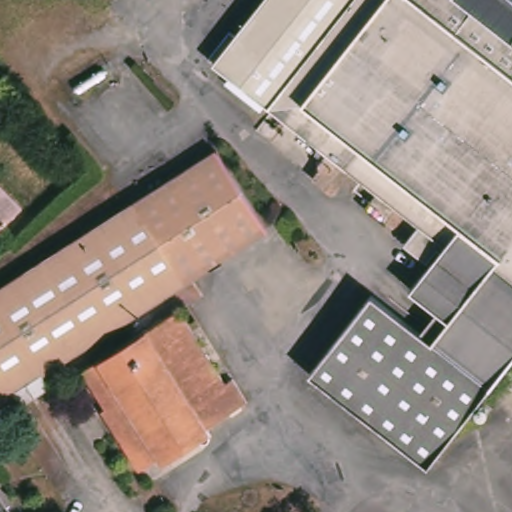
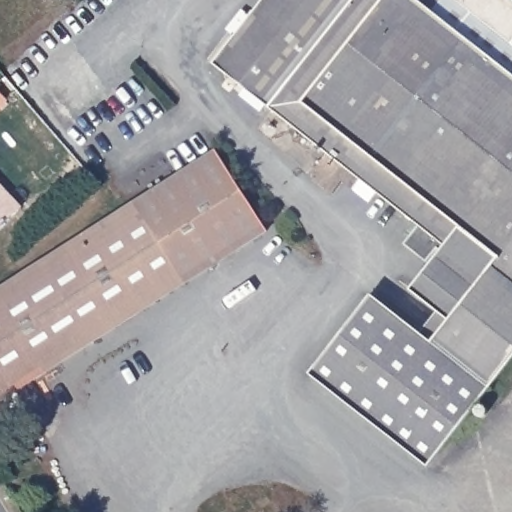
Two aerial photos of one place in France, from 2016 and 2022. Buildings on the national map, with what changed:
unchanged [(432,254),(423,266),(400,249),(414,231),(372,198),(355,185),(348,193),(332,180),(321,194),(308,183),(315,173),(313,171),(322,159),(211,70),(267,0),(447,0),(448,1),(449,0),(500,0),(512,9),(512,360),(459,427),(423,471),(418,467),(305,379),(356,314),(368,299),(417,337),(433,316),(407,295),(437,257),(432,254)]
unchanged [(4,75),(0,71),(0,56),(10,68),(4,75)]
unchanged [(0,104),(0,92),(5,99),(0,104)]
unchanged [(20,406),(17,408),(10,397),(0,404),(0,289),(211,154),(262,235),(186,284),(39,379),(45,390),(36,395),(20,406)]
unchanged [(0,233),(0,188),(22,213),(0,233)]
demolished [(176,309),(222,383),(230,379),(242,401),(205,425),(206,429),(205,432),(203,434),(200,435),(196,435),(194,432),(135,469),(98,410),(103,407),(80,370),(176,309)]

